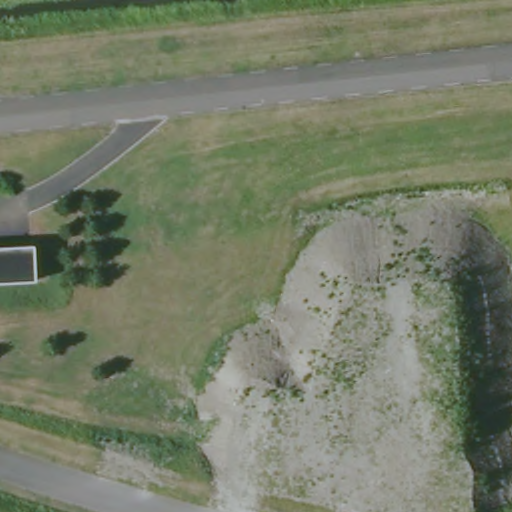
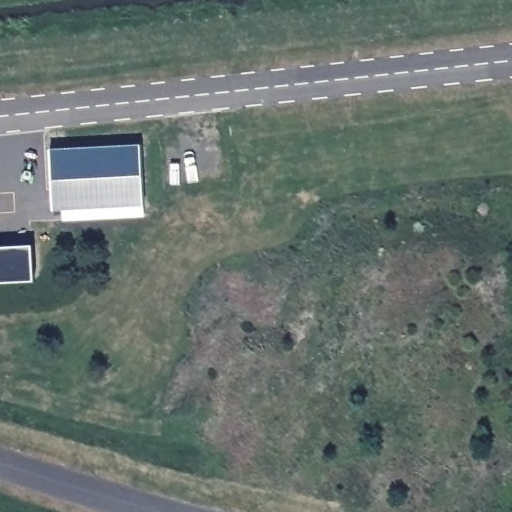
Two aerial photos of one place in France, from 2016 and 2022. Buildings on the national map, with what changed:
new [(141,145),(144,206),(53,211),(50,149),(141,145)]
unchanged [(29,259),(30,278),(0,278),(0,245),(29,245),(29,259)]

